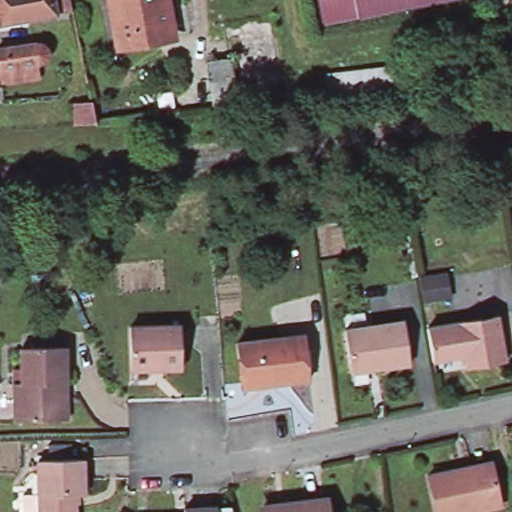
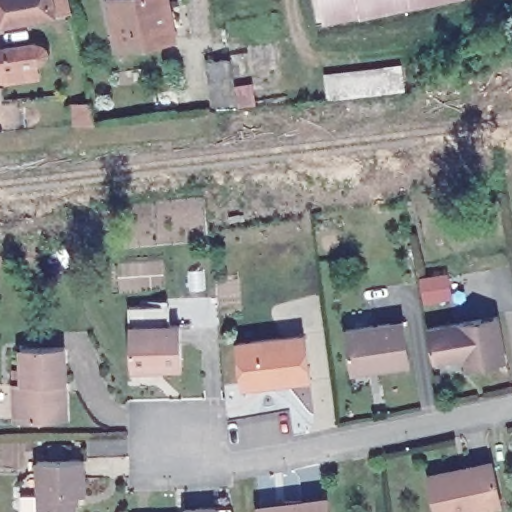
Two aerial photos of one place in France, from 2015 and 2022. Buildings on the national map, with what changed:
unchanged [(69,0),(71,10),(55,12),(0,23),(0,0),(69,0)]
unchanged [(121,44),(111,0),(166,0),(173,35),(121,44)]
unchanged [(323,25),(318,0),(407,0),(408,6),(323,25)]
unchanged [(408,6),(407,0),(453,0),(409,8),(408,6)]
unchanged [(34,54),(37,72),(0,78),(0,59),(34,54)]
unchanged [(252,105),(235,106),(235,102),(228,103),(213,104),(208,63),(220,62),(230,61),(233,90),(250,89),(252,105)]
unchanged [(337,75),(350,72),(362,71),(375,70),(388,67),(400,66),(403,91),(392,92),(379,94),(366,95),(353,97),(341,99),(327,100),(325,76),(337,75)]
unchanged [(497,315),(505,361),(467,367),(465,355),(432,360),(427,326),(497,315)]
unchanged [(352,376),(345,333),(402,325),(409,369),(377,373),(368,375),(352,376)]
unchanged [(130,351),(130,326),(179,326),(179,369),(138,370),(130,370),(130,351)]
unchanged [(241,384),(235,345),(303,336),(309,381),(273,386),(242,390),(241,384)]
unchanged [(66,347),(67,383),(59,383),(60,420),(15,422),(13,385),(22,384),(20,349),(66,347)]
unchanged [(23,495),(39,495),(37,461),(76,460),(84,460),(85,482),(85,497),(85,512),(24,512),(23,495)]
unchanged [(494,463),(495,469),(501,507),(476,512),(436,512),(429,475),(472,467),(494,463)]
unchanged [(302,507),(302,505),(325,501),(326,512),(268,512),(302,507)]
unchanged [(215,511),(230,511),(230,512),(207,512),(215,511)]

